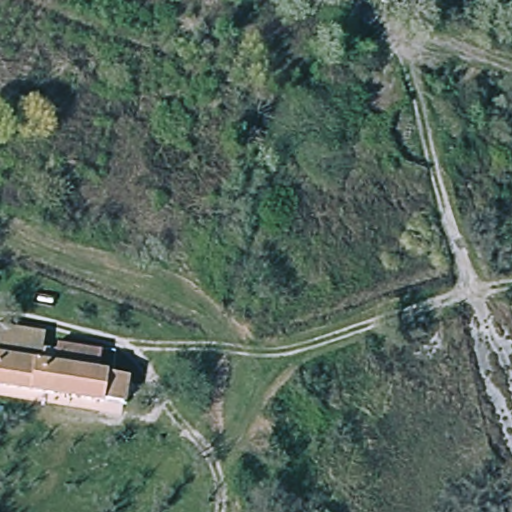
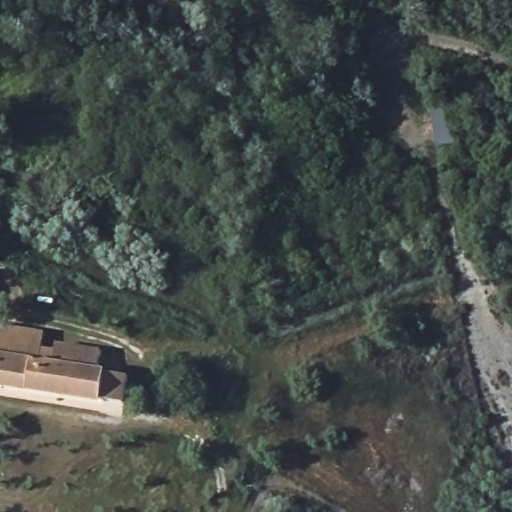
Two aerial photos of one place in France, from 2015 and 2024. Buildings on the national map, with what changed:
unchanged [(102,405),(0,389),(0,332),(37,337),(35,360),(61,363),(64,345),(109,353),(107,371),(122,374),(118,407),(102,405)]

